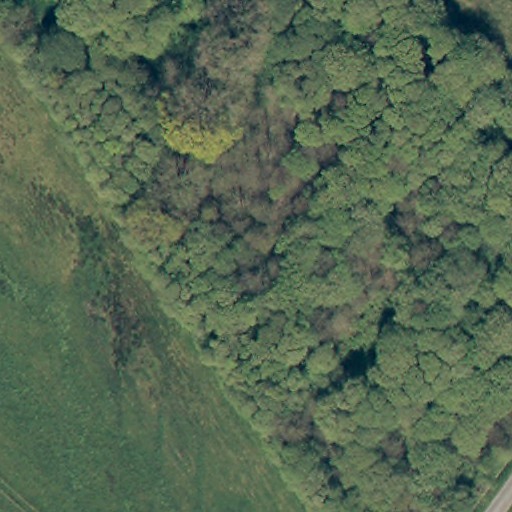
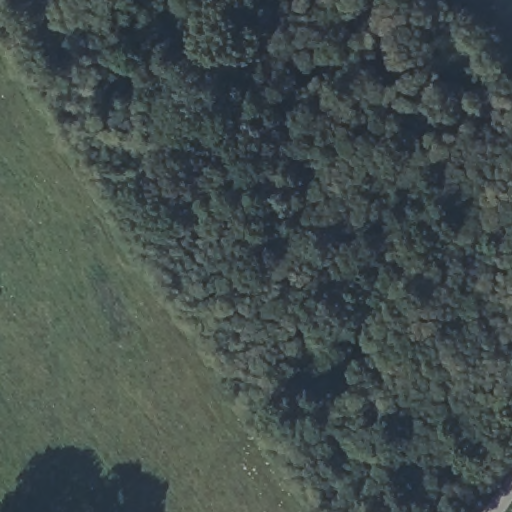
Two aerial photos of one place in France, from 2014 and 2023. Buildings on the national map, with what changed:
[]

